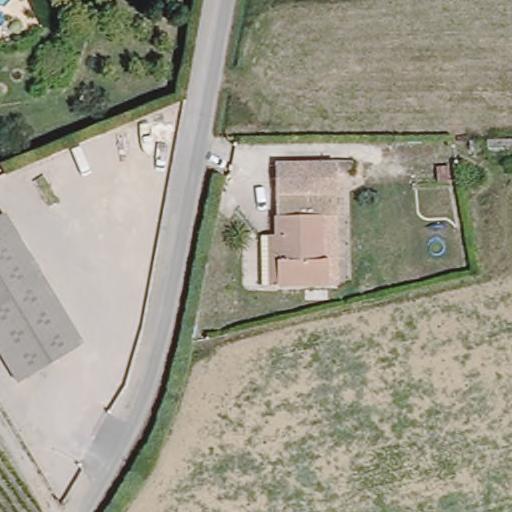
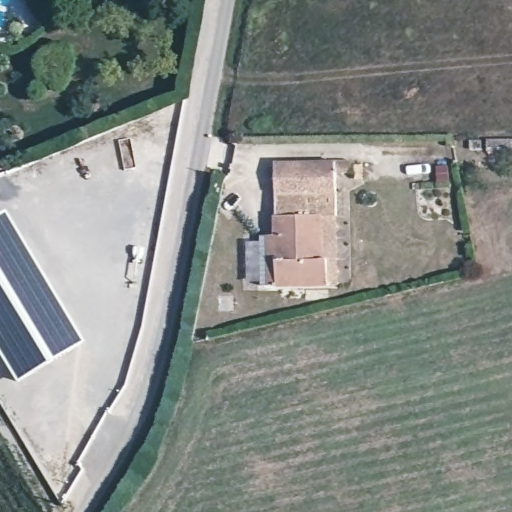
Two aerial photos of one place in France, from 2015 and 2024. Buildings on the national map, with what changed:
unchanged [(339,157),(355,156),(355,168),(339,168),(340,186),(302,187),(280,187),(281,157),(339,157)]
unchanged [(327,211),(320,211),(279,211),(280,187),(302,187),(340,186),(340,211),(327,211)]
unchanged [(272,230),(278,230),(279,211),(320,211),(327,211),(327,220),(327,254),(332,254),(332,281),(280,283),(280,280),(272,281),(272,230)]
unchanged [(80,346),(18,384),(0,354),(0,222),(5,219),(80,346)]

